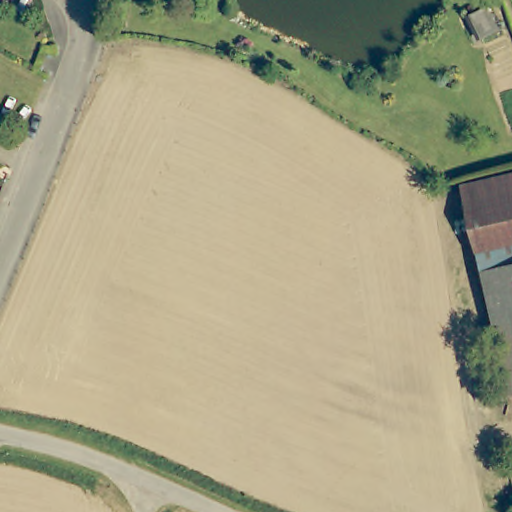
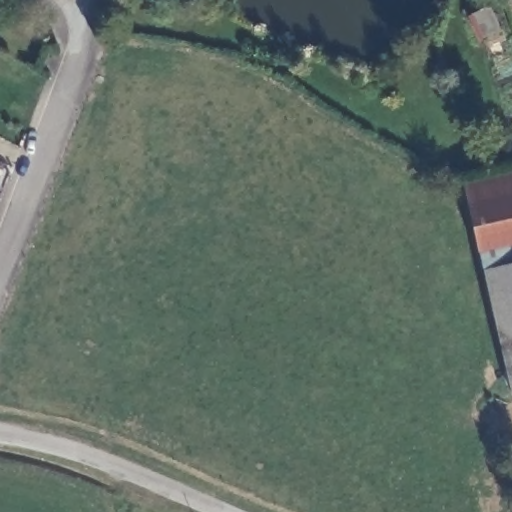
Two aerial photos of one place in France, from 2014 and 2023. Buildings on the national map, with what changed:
unchanged [(498,33),(480,42),(469,18),(488,10),(498,33)]
unchanged [(512,242),(483,249),(468,181),(512,172),(512,242)]
unchanged [(512,264),(512,369),(489,269),(512,264)]

